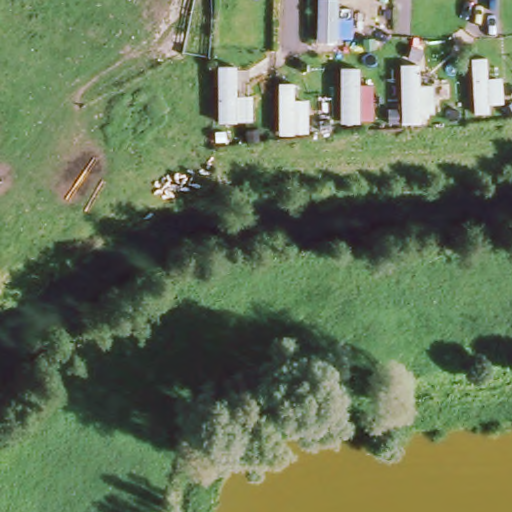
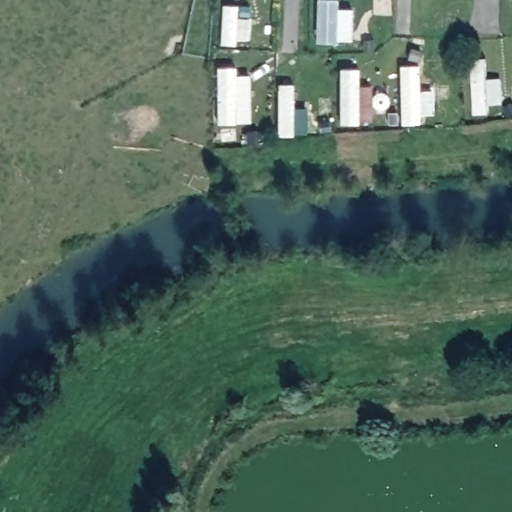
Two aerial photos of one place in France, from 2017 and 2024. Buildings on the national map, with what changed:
unchanged [(296,103),(307,103),(307,129),(294,129),(294,138),(278,138),(278,92),(296,92),(296,103)]

